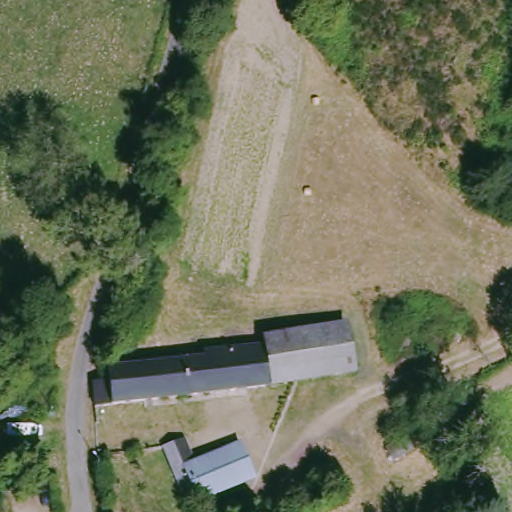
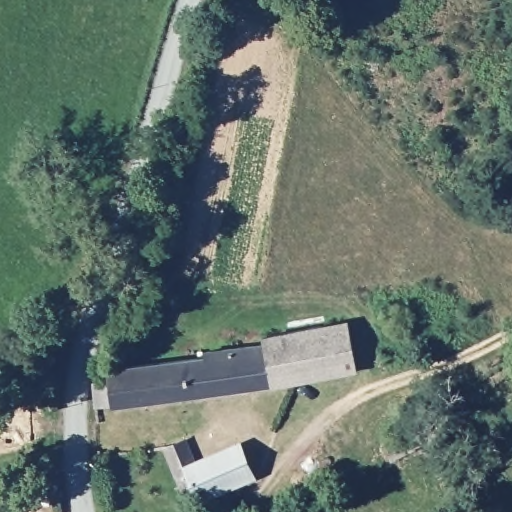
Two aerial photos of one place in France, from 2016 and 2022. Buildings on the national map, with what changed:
unchanged [(337,380),(279,386),(276,341),(275,333),(332,330),(337,380)]
unchanged [(279,386),(100,407),(97,381),(113,379),(113,365),(208,355),(207,348),(276,341),(279,386)]
unchanged [(193,466),(244,447),(255,479),(187,506),(168,453),(185,445),(193,466)]

